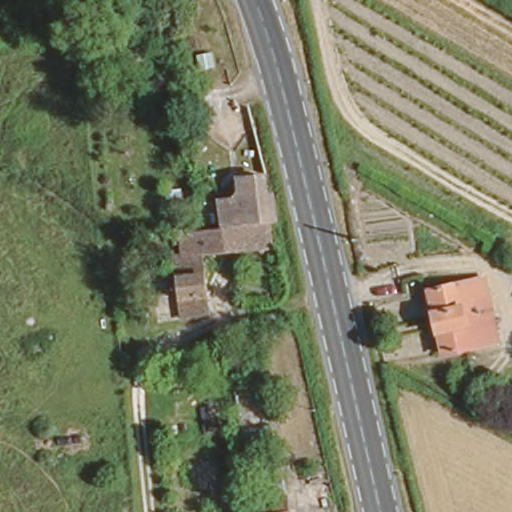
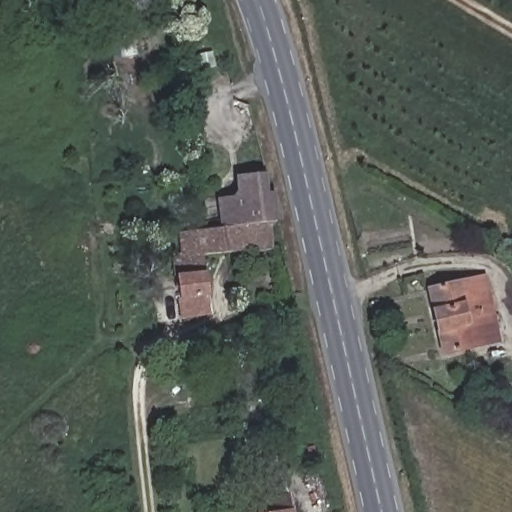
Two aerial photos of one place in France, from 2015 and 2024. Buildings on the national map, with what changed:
unchanged [(275,183),(279,209),(213,216),(210,191),(272,183),(275,183)]
unchanged [(279,209),(283,235),(200,246),(211,300),(182,305),(170,244),(181,243),(179,221),(208,217),(213,216),(279,209)]
unchanged [(488,272),(501,337),(443,348),(430,283),(488,272)]
unchanged [(259,408),(263,429),(241,435),(227,383),(271,370),(274,405),(259,408)]
unchanged [(239,470),(245,468),(286,461),(288,476),(294,512),(246,512),(239,470)]

